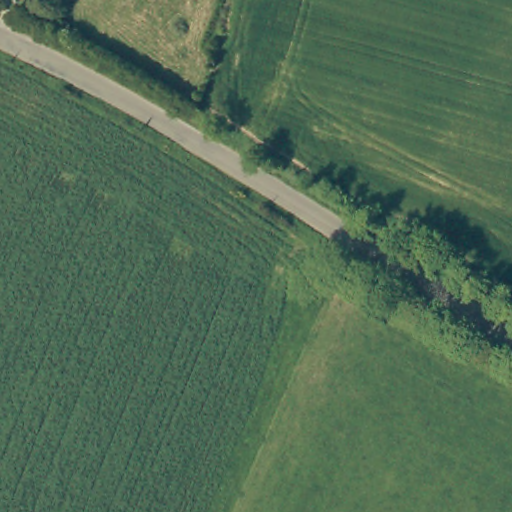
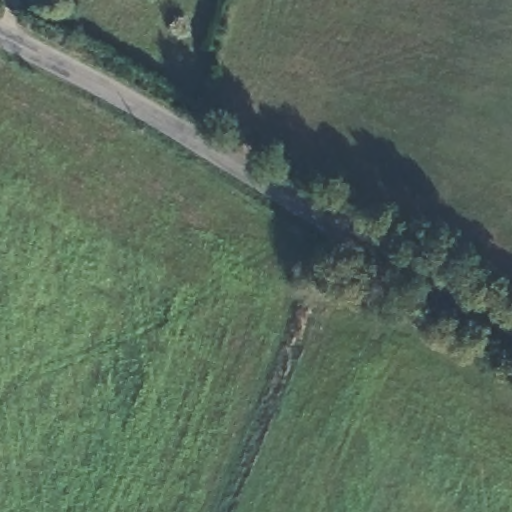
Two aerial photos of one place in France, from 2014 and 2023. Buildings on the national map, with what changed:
[]

